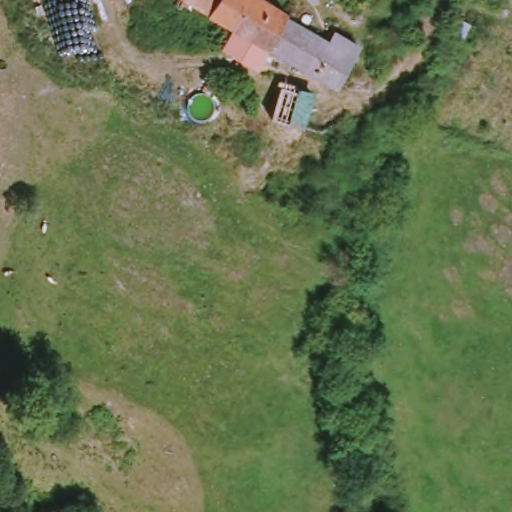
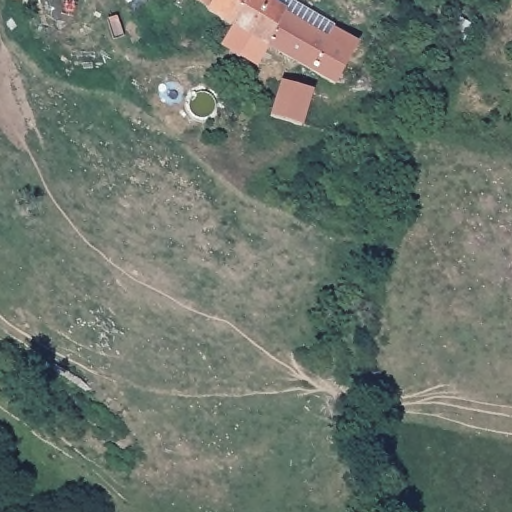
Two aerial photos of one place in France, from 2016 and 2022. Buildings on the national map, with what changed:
unchanged [(193,0),(268,0),(289,12),(287,16),(326,40),(332,30),(356,42),(334,91),(208,17),(208,10),(193,0)]
unchanged [(271,115),(281,85),(310,96),(299,126),(271,115)]

